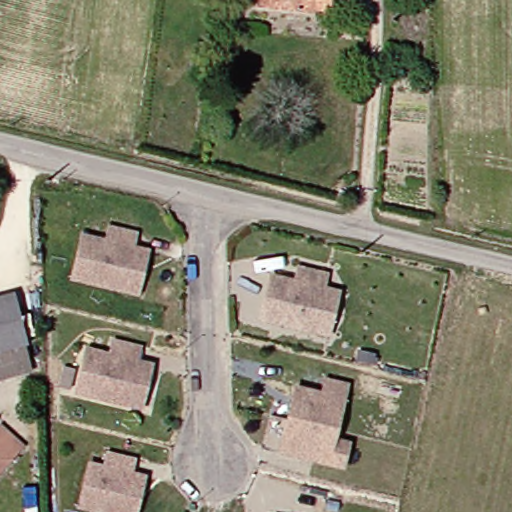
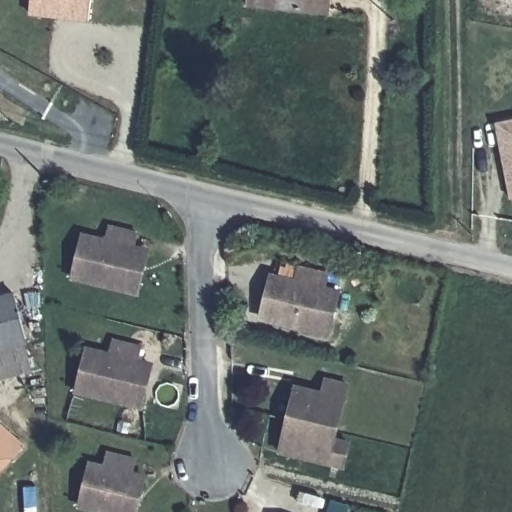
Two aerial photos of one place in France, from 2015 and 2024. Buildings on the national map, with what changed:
new [(92,0),(89,21),(25,12),(27,0),(92,0)]
unchanged [(219,0),(321,0),(319,12),(219,0)]
new [(512,121),(512,196),(496,124),(512,121)]
unchanged [(130,289),(117,286),(65,274),(72,233),(95,237),(97,224),(127,230),(126,245),(138,247),(130,289)]
unchanged [(322,336),(311,332),(258,316),(270,274),(294,281),(297,266),(327,273),(322,289),(336,294),(322,336)]
unchanged [(26,349),(0,353),(0,295),(13,292),(26,349)]
unchanged [(132,406),(117,402),(74,393),(82,354),(97,358),(99,344),(129,349),(126,364),(140,366),(132,406)]
unchanged [(33,376),(0,382),(0,353),(26,349),(33,376)]
unchanged [(324,393),(329,376),(350,383),(331,446),(345,450),(340,468),(277,449),(296,385),(324,393)]
unchanged [(0,460),(0,423),(19,438),(0,460)]
unchanged [(125,512),(109,512),(71,502),(81,461),(93,464),(97,448),(127,456),(123,471),(136,475),(125,512)]

